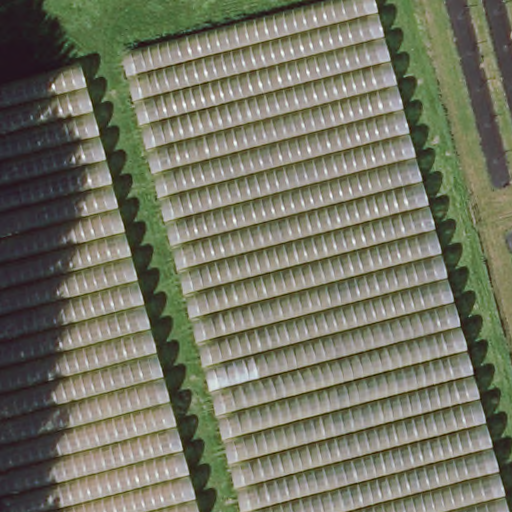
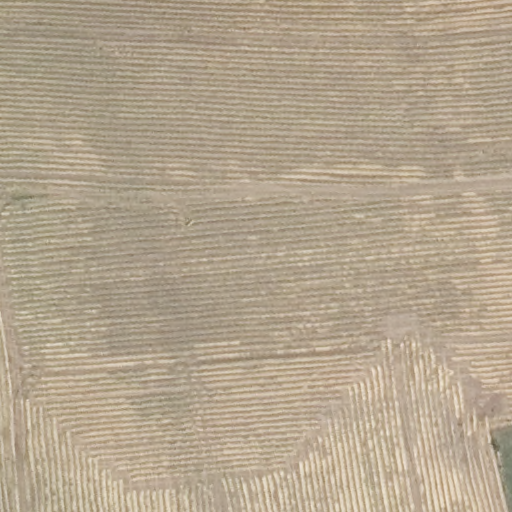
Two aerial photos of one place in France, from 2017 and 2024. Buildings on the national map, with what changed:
demolished [(210,388),(120,56),(332,0),(377,0),(464,325),(210,388)]
demolished [(0,443),(0,86),(85,65),(172,399),(0,443)]
demolished [(512,512),(242,512),(210,388),(464,325),(512,512)]
demolished [(0,512),(0,443),(172,399),(202,512),(0,512)]

